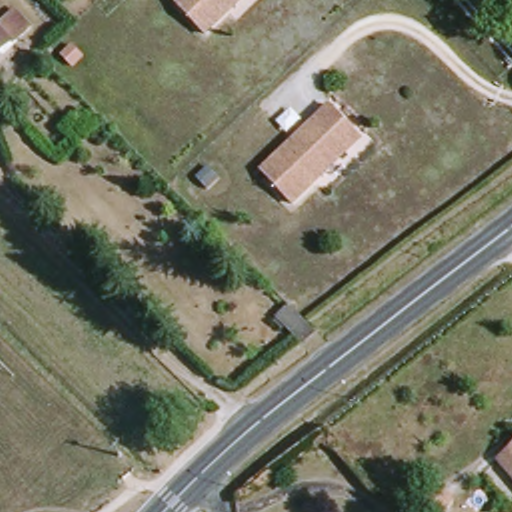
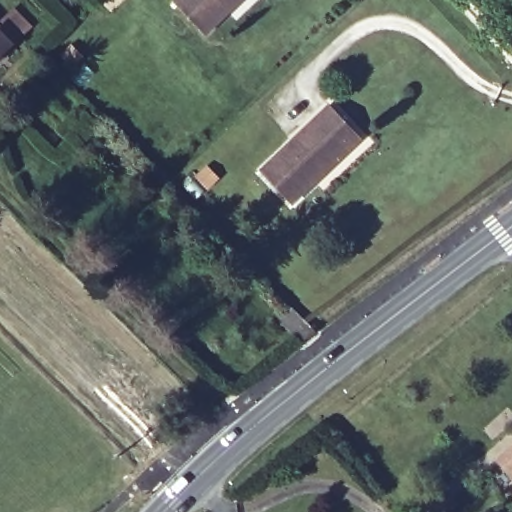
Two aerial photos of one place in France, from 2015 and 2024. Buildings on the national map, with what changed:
unchanged [(185,0),(248,0),(205,39),(176,8),(185,0)]
unchanged [(11,18),(20,9),(39,27),(30,36),(0,65),(0,26),(1,27),(11,18)]
unchanged [(332,108),(355,131),(362,139),(352,149),(291,202),(263,171),(332,108)]
unchanged [(279,319),(294,306),(314,326),(298,340),(279,319)]
unchanged [(512,456),(512,466),(507,460),(512,456)]
unchanged [(434,512),(424,500),(447,481),(463,500),(449,512),(434,512)]

